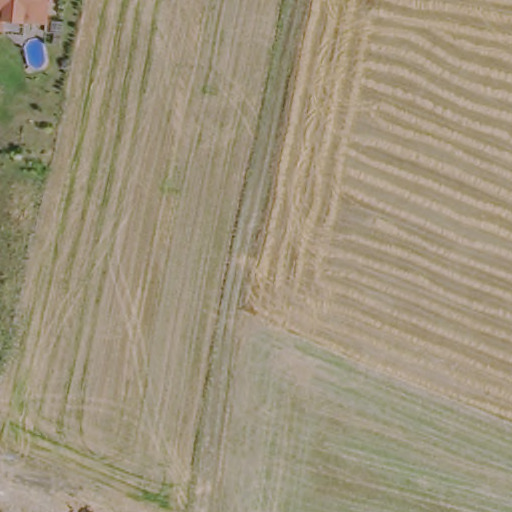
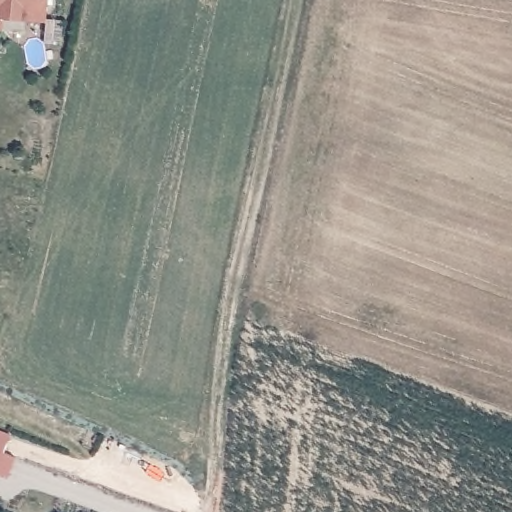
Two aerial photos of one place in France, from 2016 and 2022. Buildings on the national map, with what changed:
unchanged [(49,22),(7,19),(6,29),(0,29),(0,0),(51,0),(49,22)]
new [(0,474),(0,430),(10,434),(4,453),(16,458),(8,476),(0,474)]

